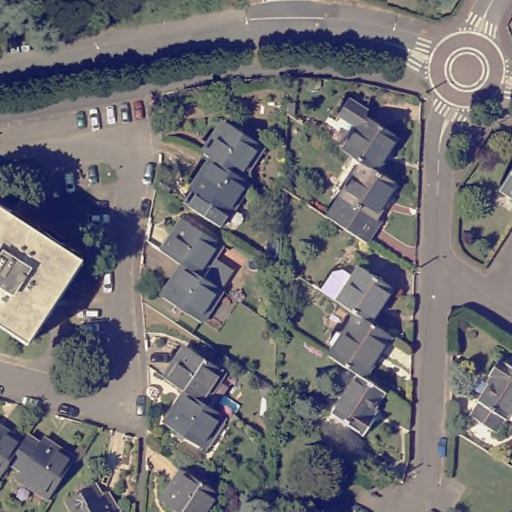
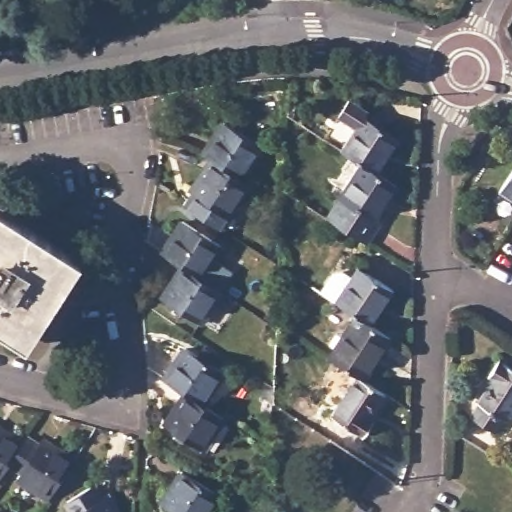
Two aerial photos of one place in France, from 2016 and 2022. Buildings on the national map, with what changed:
unchanged [(357,126),(338,115),(348,99),(367,111),(365,115),(399,137),(378,173),(362,163),(342,150),(357,126)]
unchanged [(224,121),(262,146),(241,178),(211,159),(203,153),(224,121)]
unchanged [(228,215),(191,190),(211,159),(241,178),(249,183),(228,215)]
unchanged [(376,220),(380,222),(367,245),(327,219),(362,163),(378,173),(398,186),(376,220)]
unchanged [(512,174),(512,199),(500,191),(512,174)]
unchanged [(0,321),(0,217),(6,209),(79,256),(26,337),(0,321)]
unchanged [(184,220),(221,245),(201,276),(183,265),(163,251),(184,220)]
unchanged [(200,320),(163,296),(183,265),(201,276),(221,290),(200,320)]
unchanged [(395,291),(372,325),(356,315),(337,301),(322,291),(333,275),(346,270),(354,275),(359,267),(395,291)]
unchanged [(365,380),(357,375),(329,356),(356,315),(372,325),(392,338),(365,380)]
unchanged [(186,345),(223,370),(202,403),(185,392),(165,378),(186,345)]
unchanged [(496,433),(471,416),(480,402),(478,401),(493,377),(489,375),(498,360),(512,369),(512,412),(507,420),(506,420),(496,433)]
unchanged [(371,417),(375,420),(365,436),(332,414),(357,375),(365,380),(386,394),(371,417)]
unchanged [(203,448),(165,422),(185,392),(202,403),(224,417),(203,448)]
unchanged [(22,443),(9,462),(0,476),(0,429),(22,443)]
unchanged [(18,476),(21,470),(9,462),(22,443),(26,436),(38,445),(42,439),(74,460),(49,497),(18,476)]
unchanged [(183,470),(221,495),(209,512),(177,512),(162,502),(183,470)]
unchanged [(94,485),(101,496),(106,494),(117,512),(73,512),(68,500),(94,485)]

